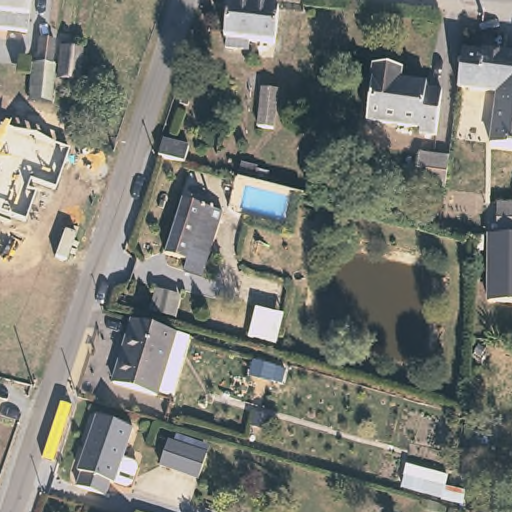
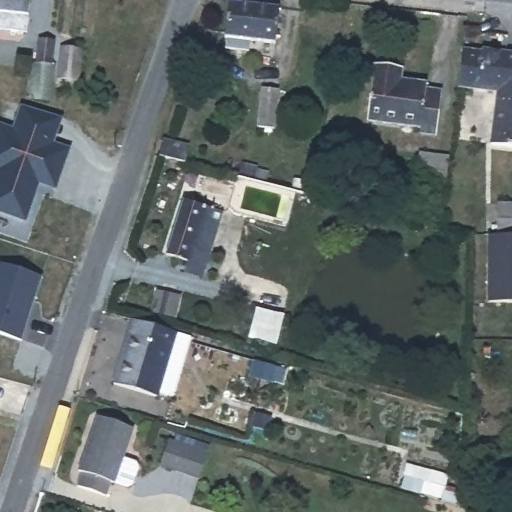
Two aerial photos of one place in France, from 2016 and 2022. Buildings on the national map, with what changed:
unchanged [(0,23),(0,0),(27,0),(24,26),(0,23)]
unchanged [(218,47),(220,38),(225,4),(249,7),(274,9),(270,43),(245,40),(244,49),(218,47)]
unchanged [(54,43),(50,67),(55,68),(51,99),(30,96),(35,63),(36,63),(40,40),(54,43)]
unchanged [(512,93),(496,91),(454,86),(458,48),(478,50),(479,47),(512,51),(512,93)]
unchanged [(82,51),(79,84),(74,84),(74,90),(68,89),(69,82),(59,81),(62,49),(82,51)]
unchanged [(423,90),(437,91),(433,135),(415,133),(415,127),(403,126),(371,123),(364,122),(371,65),(390,67),(397,67),(397,80),(423,83),(423,90)]
unchanged [(272,91),(268,130),(252,128),(257,89),(272,91)]
unchanged [(512,145),(490,142),(496,91),(512,93),(512,145)]
unchanged [(39,183),(27,220),(0,212),(0,126),(12,130),(22,105),(61,117),(50,141),(67,148),(56,188),(39,183)]
unchanged [(186,149),(182,164),(156,157),(160,142),(186,149)]
unchanged [(447,155),(443,187),(416,184),(421,151),(447,155)]
unchanged [(223,208),(219,220),(221,220),(214,240),(213,240),(202,274),(183,268),(186,258),(162,250),(181,194),(223,208)]
unchanged [(499,205),(499,201),(512,201),(512,234),(498,233),(499,205)]
unchanged [(485,234),(498,233),(512,234),(512,302),(487,302),(485,234)]
new [(23,341),(0,334),(0,263),(43,276),(23,341)]
unchanged [(286,315),(276,346),(245,339),(257,307),(286,315)]
unchanged [(164,390),(159,393),(150,390),(149,393),(110,381),(107,380),(119,339),(121,333),(125,316),(146,322),(181,332),(164,390)]
unchanged [(131,422),(114,480),(108,478),(104,491),(80,484),(84,471),(78,469),(96,411),(131,422)]
unchanged [(208,456),(198,479),(158,464),(168,442),(208,456)]

